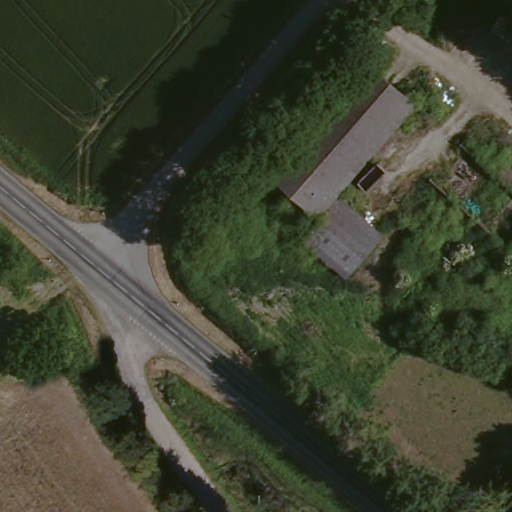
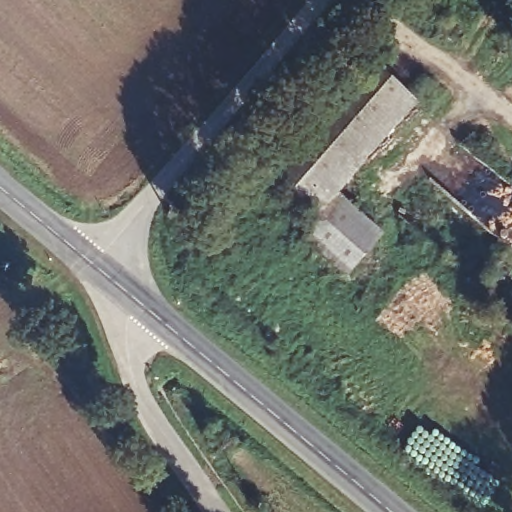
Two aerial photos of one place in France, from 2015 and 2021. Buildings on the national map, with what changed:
unchanged [(264,179),(366,68),(411,109),(331,202),(313,223),(264,179)]
unchanged [(376,239),(341,282),(296,244),(313,223),(331,202),(376,239)]

